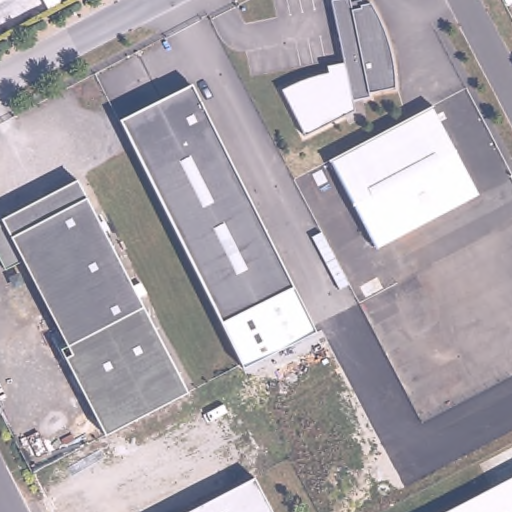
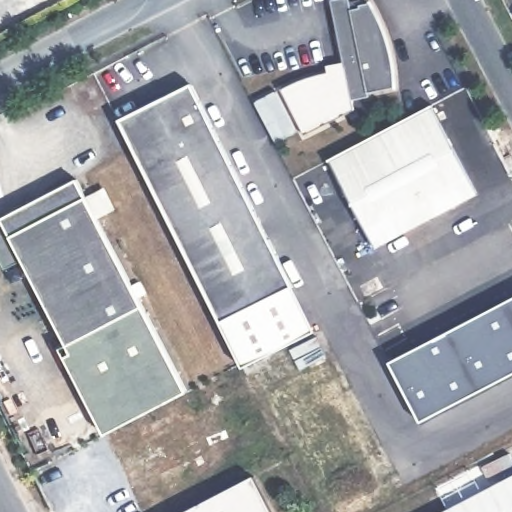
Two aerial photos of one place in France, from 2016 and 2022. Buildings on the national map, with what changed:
unchanged [(371,2),(375,9),(379,17),(382,24),(385,31),(388,38),(391,47),(396,71),(396,74),(396,81),(396,87),(370,92),(371,97),(354,100),(347,71),(335,13),(332,0),(351,0),(353,9),(361,7),(360,5),(371,2)]
unchanged [(311,75),(318,73),(325,72),(329,72),(330,74),(347,71),(354,100),(356,110),(306,135),(283,90),(311,75)]
unchanged [(187,86),(195,104),(287,290),(215,326),(164,224),(114,122),(169,95),(187,86)]
unchanged [(432,110),(478,199),(375,252),(329,164),(432,110)]
unchanged [(152,411),(149,412),(141,417),(103,437),(58,350),(64,347),(21,267),(5,275),(0,265),(0,226),(76,186),(185,393),(152,411)]
unchanged [(215,326),(287,290),(291,286),(314,332),(242,368),(215,326)]
new [(512,299),(512,375),(420,423),(389,363),(512,299)]
unchanged [(271,512),(184,512),(252,477),(271,512)]
unchanged [(512,477),(512,512),(446,512),(512,477)]

